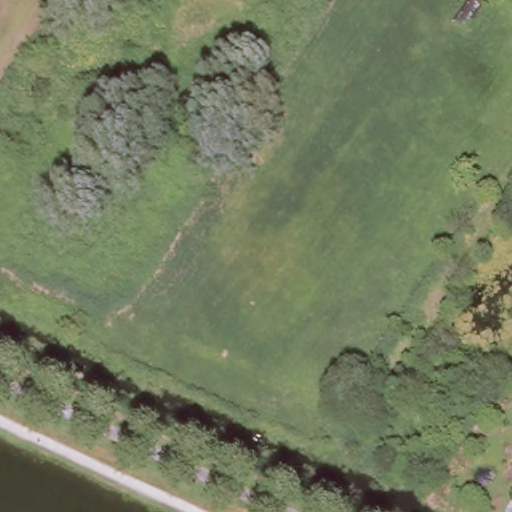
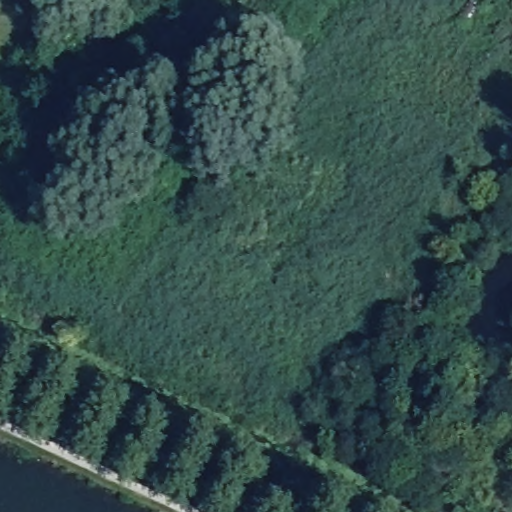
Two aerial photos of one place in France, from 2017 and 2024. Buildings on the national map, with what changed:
unchanged [(482,2),(463,30),(452,21),(465,0),(478,0),(482,2)]

